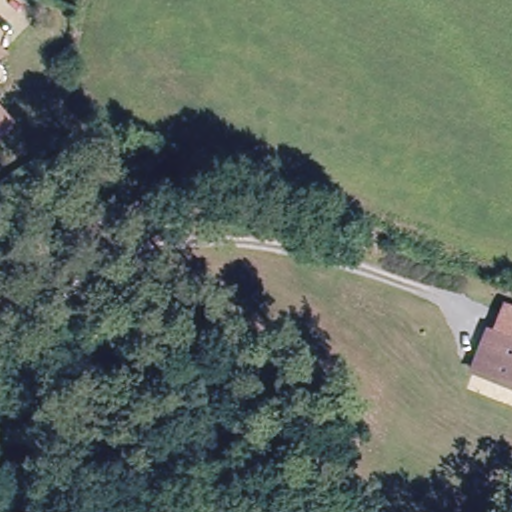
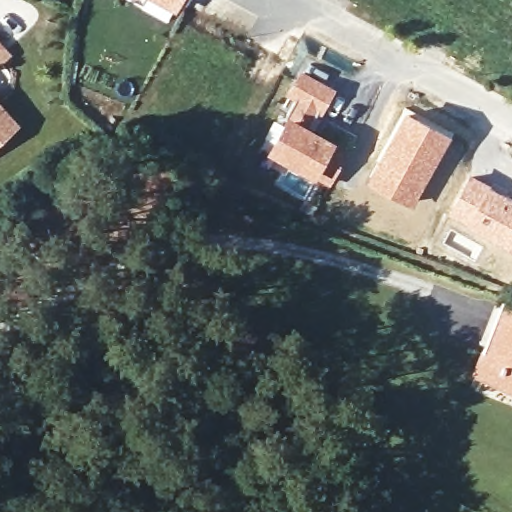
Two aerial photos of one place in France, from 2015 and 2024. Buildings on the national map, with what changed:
new [(176,7),(162,0),(180,0),(176,7)]
unchanged [(0,62),(0,40),(11,53),(0,62)]
new [(301,67),(337,87),(315,125),(287,111),(293,100),(285,95),(301,67)]
unchanged [(0,140),(0,102),(20,122),(0,140)]
new [(404,107),(451,132),(413,203),(366,177),(404,107)]
new [(330,185),(316,178),(266,151),(287,111),(315,125),(337,139),(349,146),(330,185)]
new [(470,172),(512,194),(512,248),(448,212),(470,172)]
unchanged [(476,369),(485,346),(491,332),(501,335),(511,310),(512,311),(512,384),(498,378),(476,369)]

